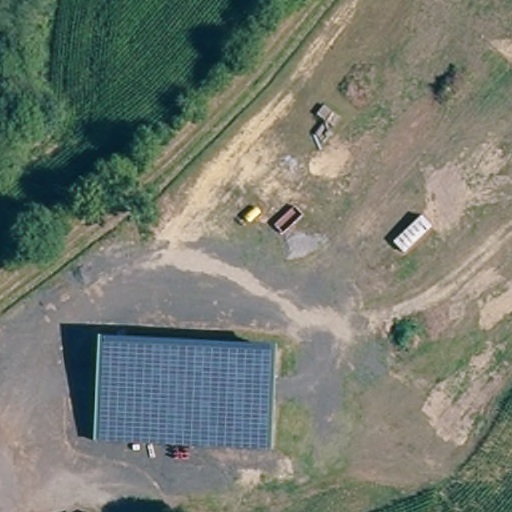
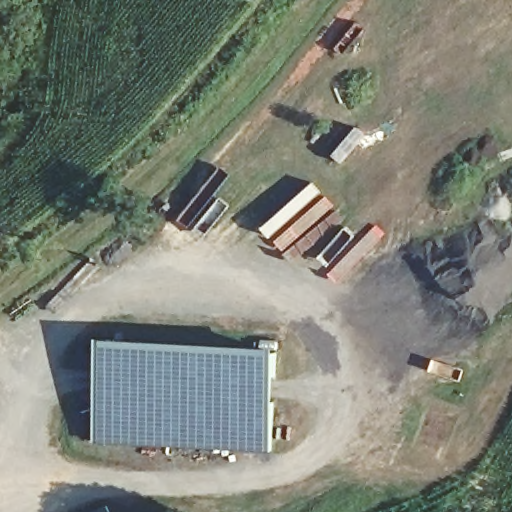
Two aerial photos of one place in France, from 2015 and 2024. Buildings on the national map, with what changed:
unchanged [(276,346),(274,451),(95,441),(101,337),(276,346)]

